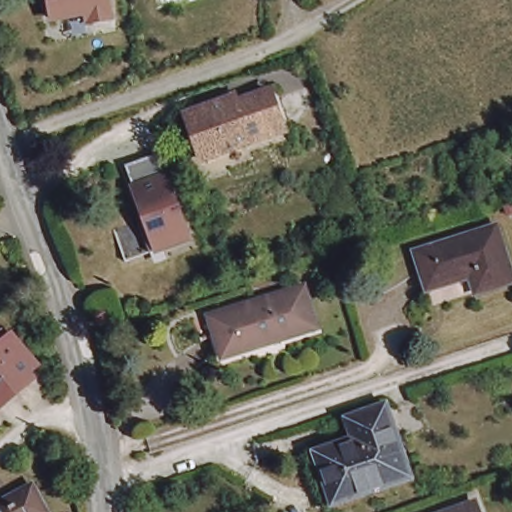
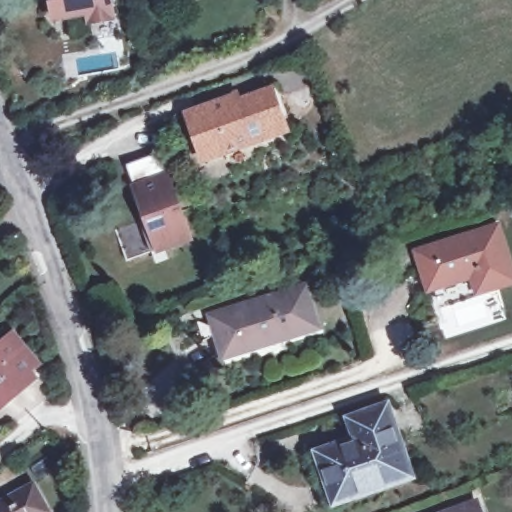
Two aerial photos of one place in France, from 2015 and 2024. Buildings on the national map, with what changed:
unchanged [(84,16),(82,7),(48,13),(47,0),(106,0),(108,13),(84,16)]
unchanged [(198,149),(186,113),(236,94),(239,100),(270,89),(285,130),(223,153),(202,160),(198,149)]
unchanged [(190,240),(127,263),(116,232),(140,223),(139,219),(146,217),(127,166),(160,154),(190,240)]
unchanged [(415,243),(497,218),(512,265),(512,272),(477,284),(472,267),(427,280),(415,243)]
unchanged [(222,354),(211,318),(303,289),(316,328),(280,339),(279,337),(222,354)]
unchanged [(5,334),(28,361),(21,367),(26,373),(8,388),(0,395),(0,338),(5,334)]
unchanged [(359,418),(396,405),(420,477),(343,503),(327,452),(365,439),(359,418)]
unchanged [(27,481),(42,508),(39,509),(40,512),(0,512),(0,496),(27,481)]
unchanged [(474,512),(448,512),(470,504),(474,512)]

